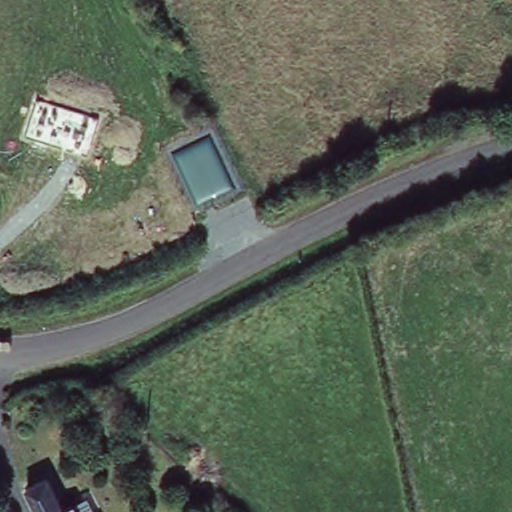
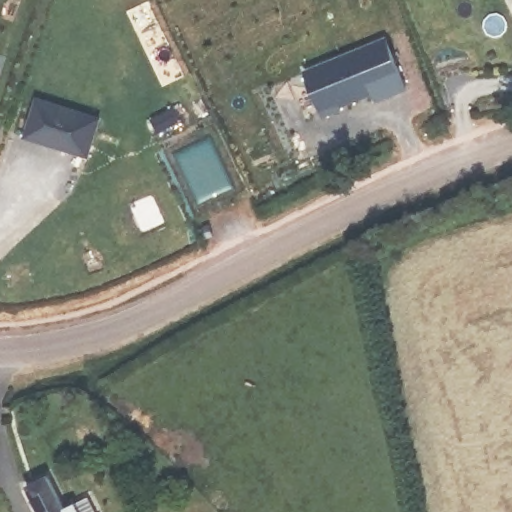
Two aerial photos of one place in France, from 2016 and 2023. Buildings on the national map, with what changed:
new [(386,41),(407,91),(376,105),(371,94),(337,109),(339,111),(322,119),(305,76),(386,41)]
new [(97,117),(86,155),(26,134),(37,97),(97,117)]
unchanged [(45,479),(62,509),(73,504),(78,512),(34,512),(22,491),(45,479)]

